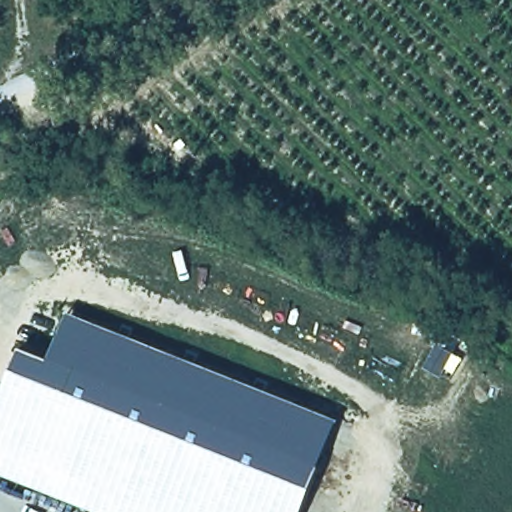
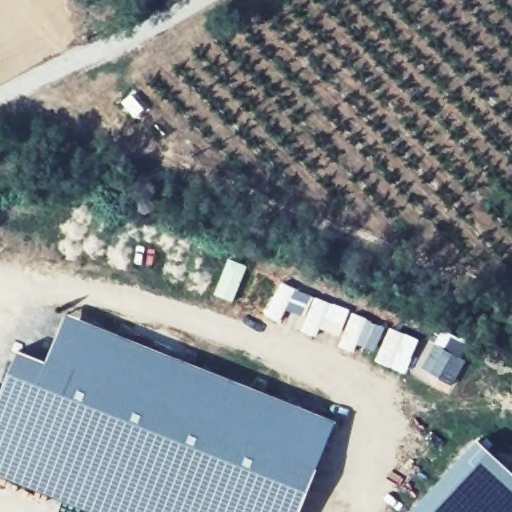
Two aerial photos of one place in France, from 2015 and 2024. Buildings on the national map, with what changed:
unchanged [(45,363),(63,314),(337,420),(301,512),(92,512),(0,476),(0,393),(17,351),(45,363)]
new [(512,472),(512,512),(410,512),(478,441),(512,472)]

